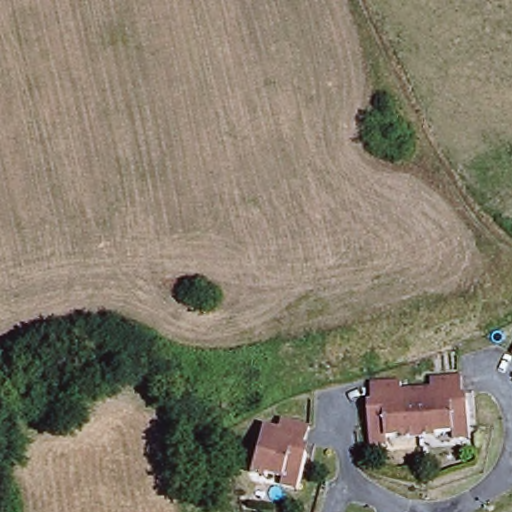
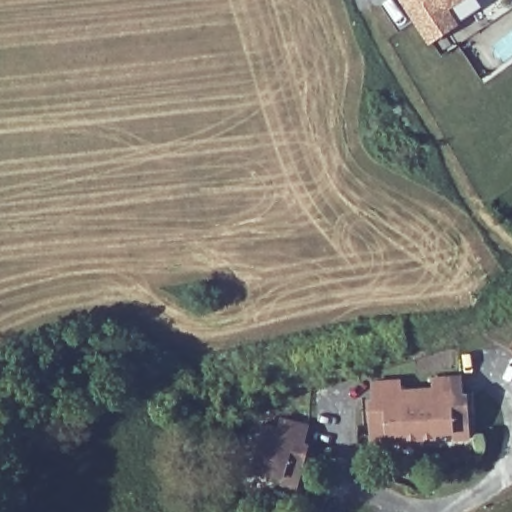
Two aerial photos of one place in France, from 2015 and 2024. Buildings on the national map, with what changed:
new [(459,22),(428,43),(399,0),(461,0),(449,7),(459,22)]
unchanged [(370,437),(369,412),(375,412),(376,401),(371,402),(372,388),(396,386),(396,394),(429,393),(429,384),(463,383),(464,395),(459,398),(460,406),(468,405),(469,432),(469,441),(453,442),(452,433),(386,436),(386,448),(370,448),(370,437)]
unchanged [(284,484),(286,474),(256,468),(264,424),(277,427),(280,418),(307,423),(305,441),(301,440),(300,447),(309,450),(303,477),(302,487),(284,484)]

